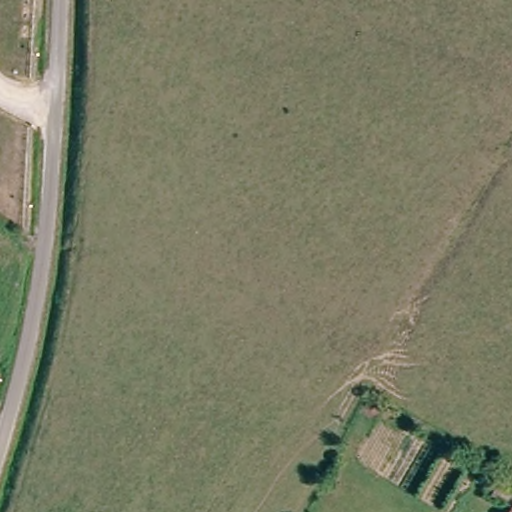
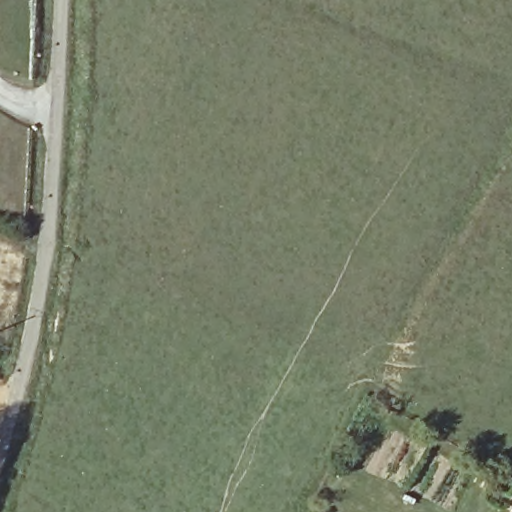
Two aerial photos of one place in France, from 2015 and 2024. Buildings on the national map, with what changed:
unchanged [(504,512),(509,505),(512,507),(512,512),(504,512)]

